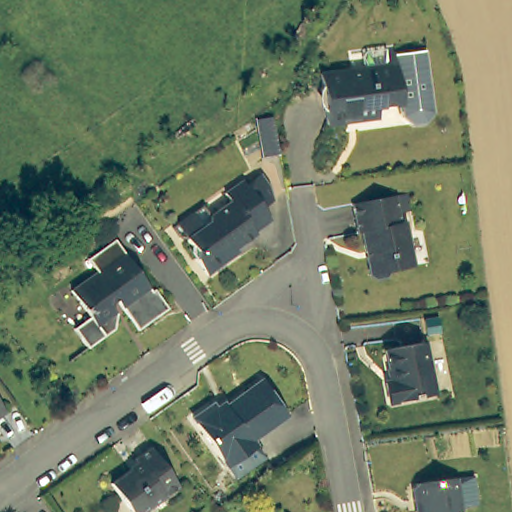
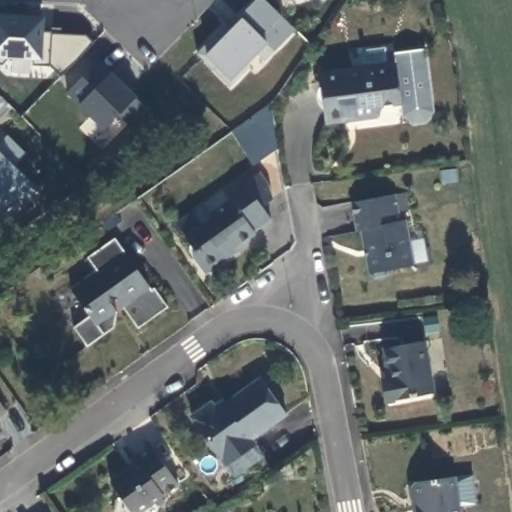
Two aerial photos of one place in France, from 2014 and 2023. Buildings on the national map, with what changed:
new [(267,61),(260,52),(248,64),(249,69),(230,88),(197,53),(226,25),(232,29),(243,18),(258,0),(266,0),(282,16),(295,31),(267,61)]
new [(62,76),(51,66),(34,65),(34,61),(8,60),(2,65),(0,63),(0,15),(45,17),(44,34),(86,36),(94,43),(62,76)]
unchanged [(420,45),(429,107),(422,118),(416,122),(408,122),(397,115),(395,101),(372,104),(373,115),(324,120),(318,71),(384,61),(383,50),(420,45)]
new [(112,72),(136,97),(146,107),(128,126),(120,116),(103,132),(78,106),(66,93),(99,61),(112,72)]
new [(0,101),(0,99),(1,100),(0,101)]
new [(234,132),(270,106),(277,149),(252,165),(234,132)]
new [(25,153),(14,166),(37,189),(5,223),(0,219),(0,143),(7,136),(25,153)]
unchanged [(256,171),(267,186),(268,197),(258,205),(266,218),(251,230),(252,232),(223,253),(224,255),(200,272),(188,256),(189,249),(180,237),(173,236),(165,225),(196,202),(205,213),(225,197),(220,190),(239,177),(241,181),(256,171)]
unchanged [(401,219),(406,219),(415,264),(389,269),(384,275),(375,277),(369,272),(360,227),(356,227),(351,201),(395,193),(401,219)]
unchanged [(90,315),(72,288),(98,268),(89,255),(115,237),(155,288),(156,287),(169,304),(140,327),(115,296),(109,302),(118,313),(115,326),(101,336),(89,345),(75,325),(87,317),(90,315)]
unchanged [(392,379),(387,348),(426,340),(436,392),(391,401),(387,380),(392,379)]
unchanged [(190,416),(211,402),(217,409),(222,406),(221,404),(260,377),(285,413),(251,437),(255,443),(224,465),(190,416)]
unchanged [(8,406),(0,413),(0,396),(8,406)]
unchanged [(133,456),(150,444),(178,483),(139,512),(136,512),(130,511),(110,482),(137,464),(133,456)]
unchanged [(417,512),(420,502),(413,499),(412,488),(416,481),(457,475),(463,512),(417,512)]

